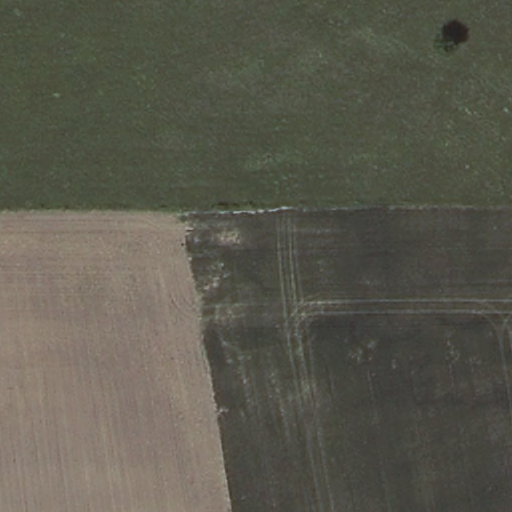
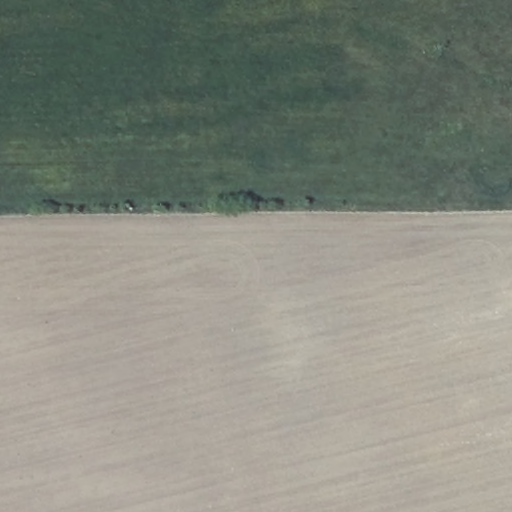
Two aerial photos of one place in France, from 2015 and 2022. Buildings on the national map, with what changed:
[]

